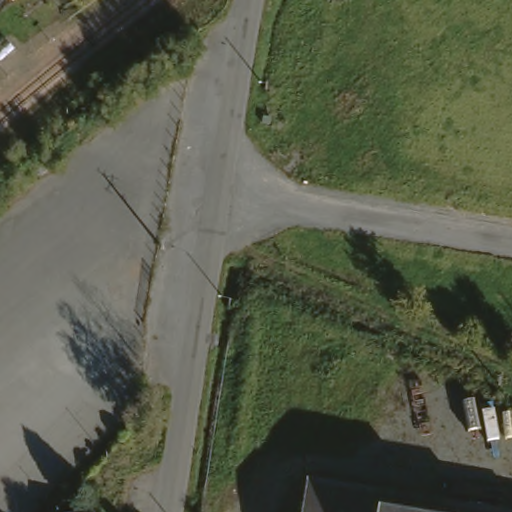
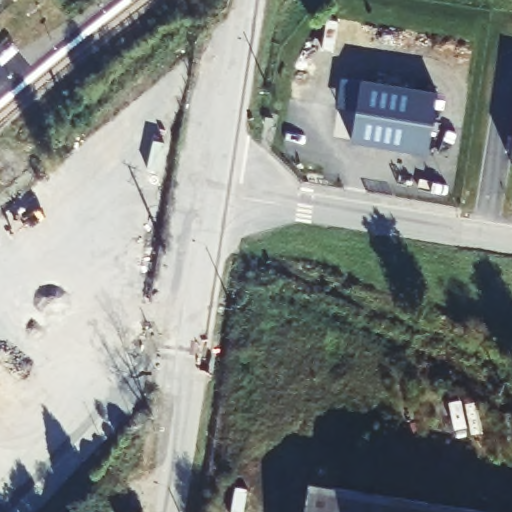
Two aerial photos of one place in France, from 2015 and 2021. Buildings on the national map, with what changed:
new [(355,109),(337,105),(340,78),(359,81),(360,78),(436,92),(426,154),(350,141),(355,109)]
unchanged [(432,504),(479,512),(305,512),(309,484),(432,504)]
unchanged [(67,512),(68,505),(104,512),(67,512)]

